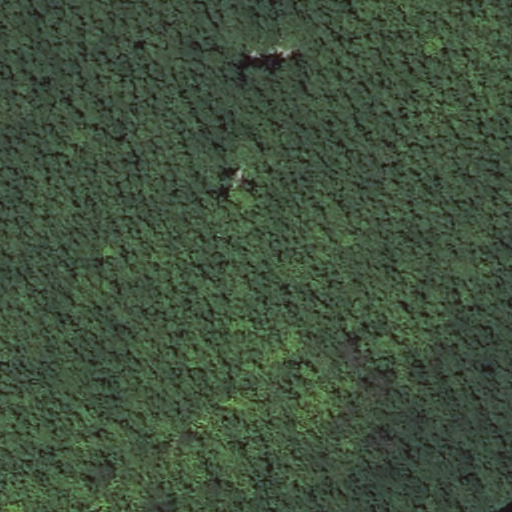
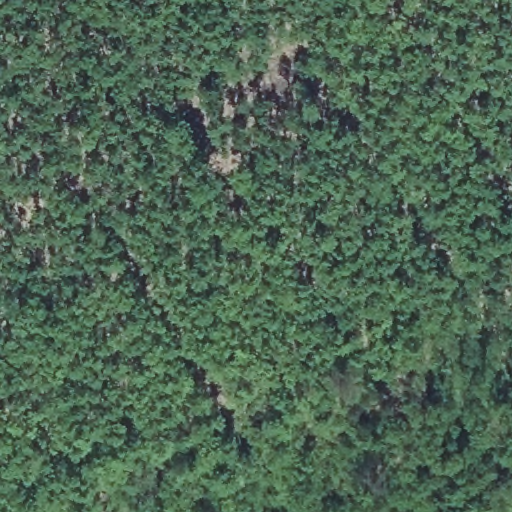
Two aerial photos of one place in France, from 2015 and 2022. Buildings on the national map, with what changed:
[]

